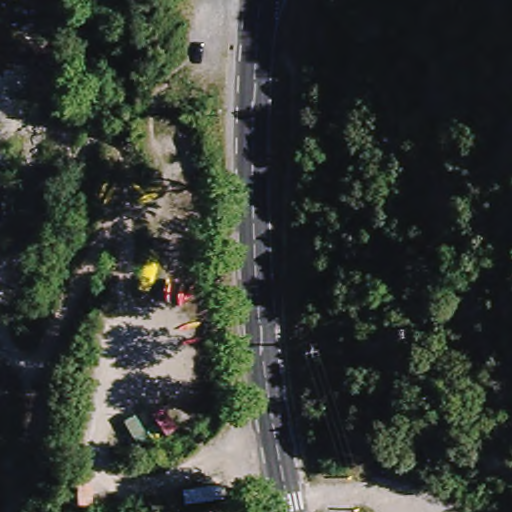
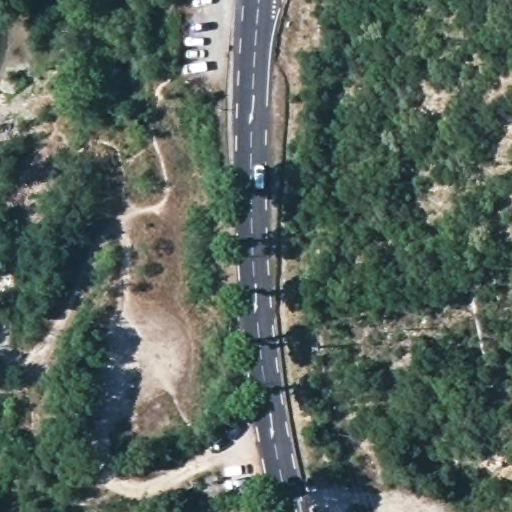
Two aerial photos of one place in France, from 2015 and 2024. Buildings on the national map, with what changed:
unchanged [(92,469),(91,498),(77,498),(77,470),(92,469)]

